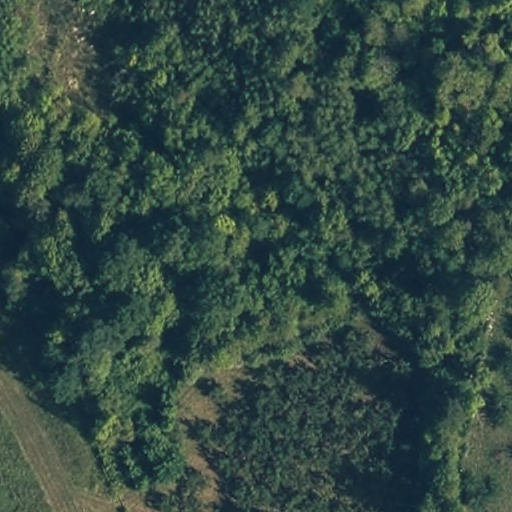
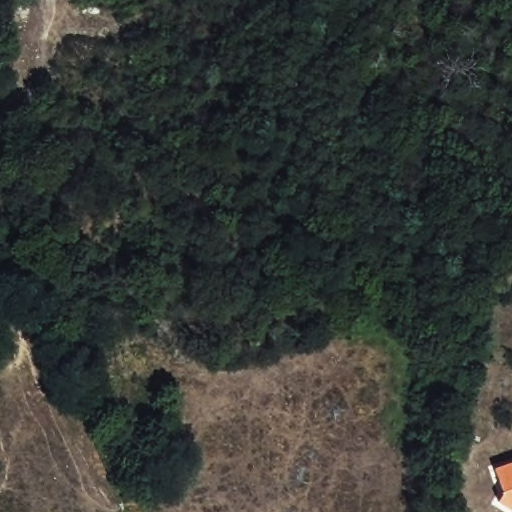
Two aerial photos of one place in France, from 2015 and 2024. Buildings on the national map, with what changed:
new [(512,511),(498,502),(503,495),(494,470),(512,464),(512,511)]

